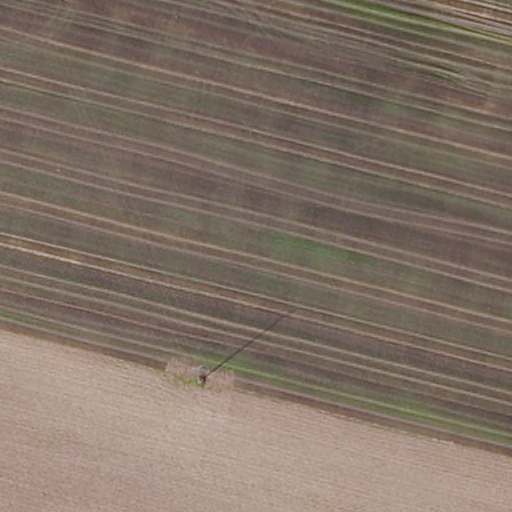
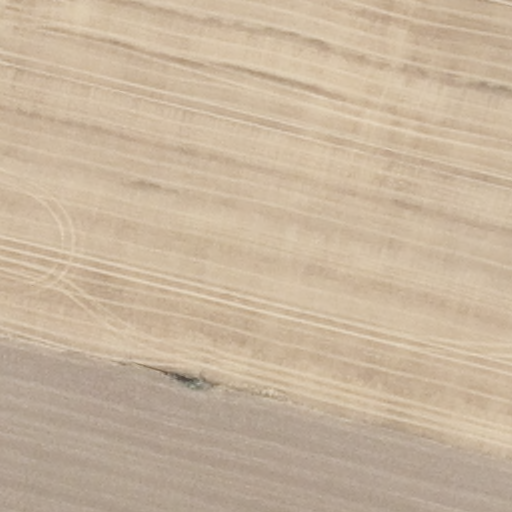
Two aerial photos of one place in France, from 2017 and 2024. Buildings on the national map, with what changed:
[]

